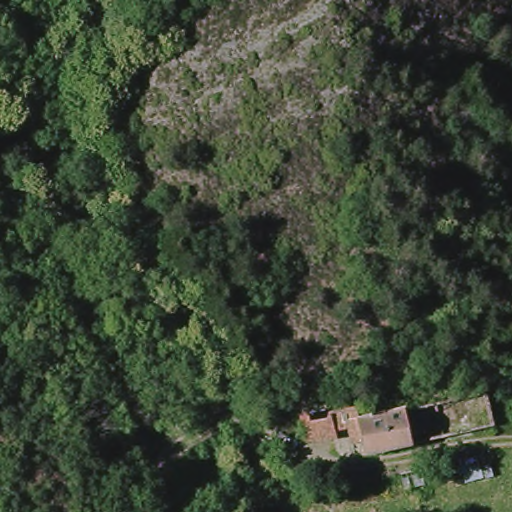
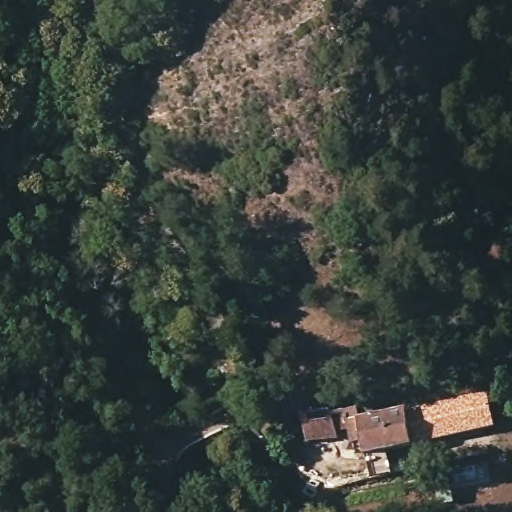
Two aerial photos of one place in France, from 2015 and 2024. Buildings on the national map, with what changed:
new [(416,408),(416,406),(487,391),(494,427),(420,443),(416,408)]
unchanged [(359,427),(341,430),(337,404),(359,402),(361,415),(416,408),(420,443),(373,452),(362,453),(359,427)]
unchanged [(341,430),(341,437),(309,438),(306,405),(337,404),(341,430)]

